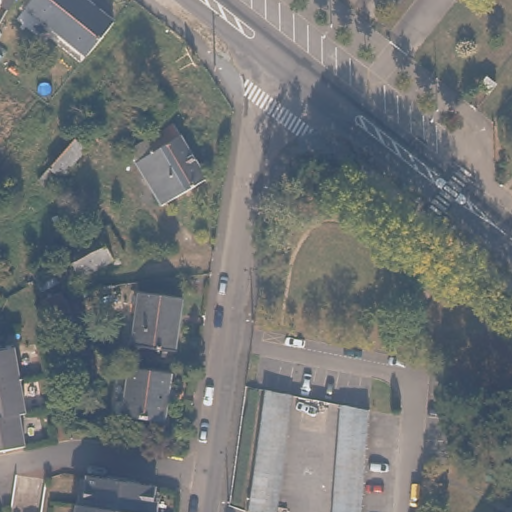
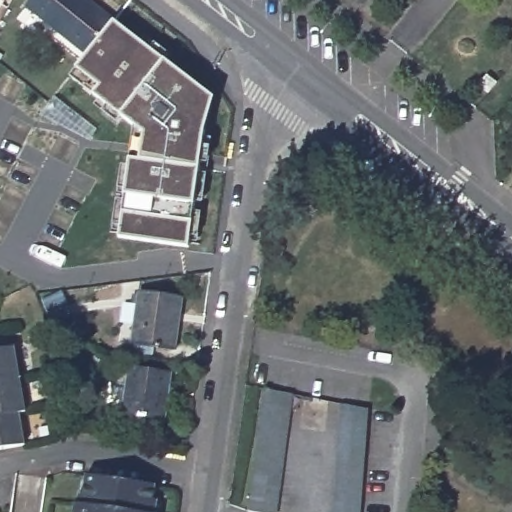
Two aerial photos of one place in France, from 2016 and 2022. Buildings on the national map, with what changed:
unchanged [(85,54),(84,56),(80,53),(22,8),(29,0),(77,0),(107,24),(85,54)]
new [(125,194),(128,158),(132,124),(120,115),(92,93),(70,75),(78,68),(115,20),(165,59),(216,98),(204,136),(197,206),(194,206),(190,247),(120,237),(125,194)]
unchanged [(486,88),(477,98),(468,91),(477,81),(486,88)]
demolished [(174,123),(206,178),(161,204),(128,148),(174,123)]
demolished [(90,144),(65,173),(52,164),(77,134),(90,144)]
demolished [(98,232),(141,212),(158,241),(111,262),(98,232)]
demolished [(75,277),(90,275),(95,289),(79,295),(72,278),(75,277)]
unchanged [(182,295),(175,347),(132,341),(140,290),(182,295)]
unchanged [(18,345),(28,408),(24,409),(28,440),(0,444),(0,348),(18,345)]
unchanged [(82,356),(88,375),(78,377),(73,358),(82,356)]
unchanged [(120,412),(116,408),(117,400),(121,397),(126,398),(130,365),(171,370),(165,418),(125,413),(120,412)]
unchanged [(276,512),(248,512),(265,392),(293,397),(276,512)]
unchanged [(371,400),(362,512),(333,512),(342,395),(371,400)]
unchanged [(148,512),(78,512),(84,474),(151,484),(148,512)]

